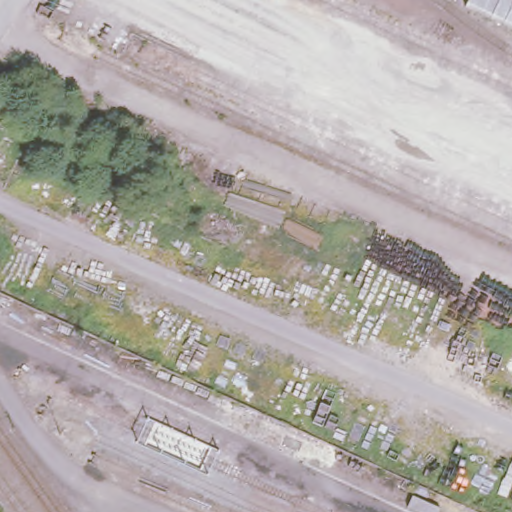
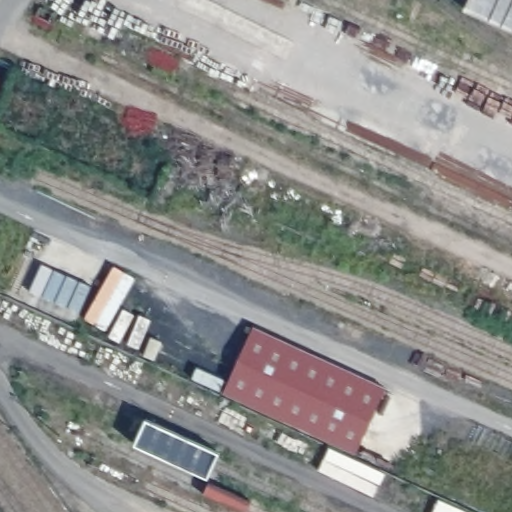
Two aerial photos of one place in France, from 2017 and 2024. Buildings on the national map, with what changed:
unchanged [(512,31),(463,9),(467,0),(512,0),(512,31)]
new [(31,291),(43,265),(90,286),(78,312),(31,291)]
new [(221,393),(251,325),(384,391),(358,452),(221,393)]
new [(138,443),(148,421),(216,453),(206,475),(138,443)]

